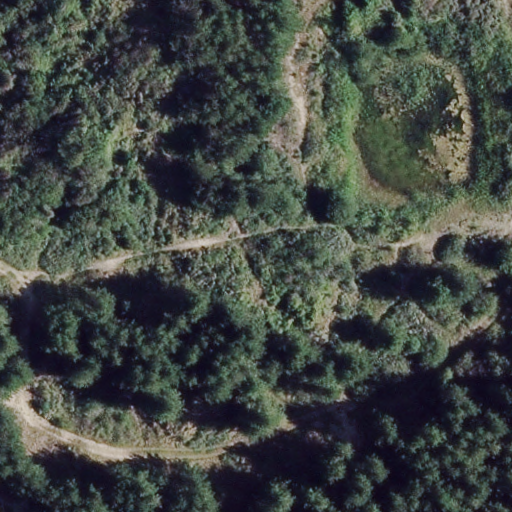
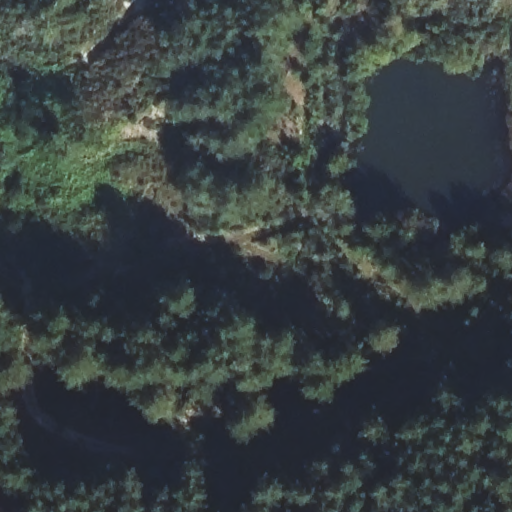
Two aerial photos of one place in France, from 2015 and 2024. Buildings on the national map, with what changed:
unchanged [(334,0),(386,0),(395,18),(342,33),(332,8),(332,1),(334,0)]

